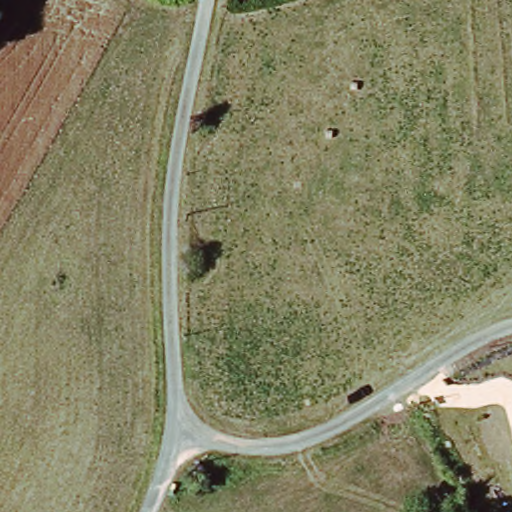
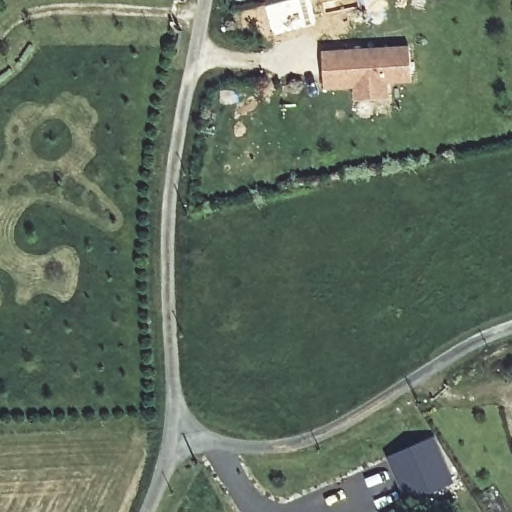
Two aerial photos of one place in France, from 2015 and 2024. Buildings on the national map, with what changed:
new [(410,47),(412,84),(390,86),(390,99),(354,102),(354,88),(326,89),(324,54),(410,47)]
new [(434,438),(452,480),(410,499),(391,457),(434,438)]

